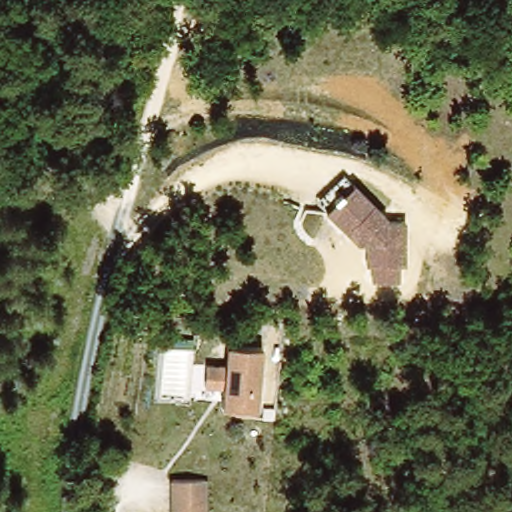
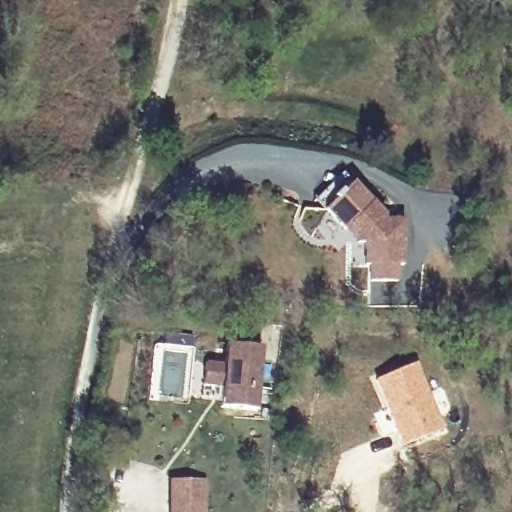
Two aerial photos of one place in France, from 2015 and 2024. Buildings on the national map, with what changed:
unchanged [(355,180),(391,216),(405,216),(405,268),(397,268),(397,279),(371,280),(370,269),(362,269),(362,243),(355,242),(323,209),(355,180)]
unchanged [(223,405),(225,385),(207,382),(210,360),(228,363),(231,343),(266,348),(257,410),(223,405)]
new [(415,362),(444,427),(402,444),(374,379),(415,362)]
unchanged [(174,478),(190,478),(204,477),(206,512),(174,512),(174,478)]

